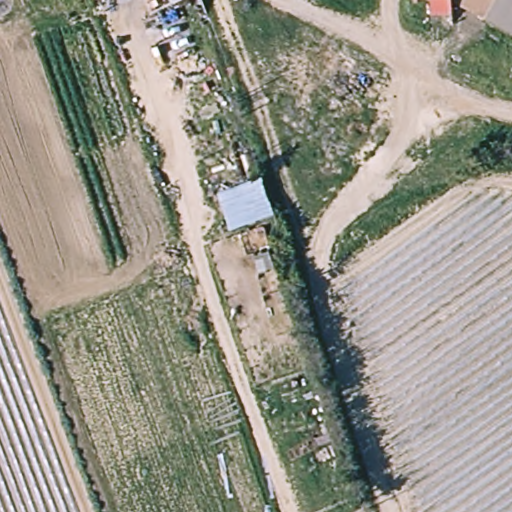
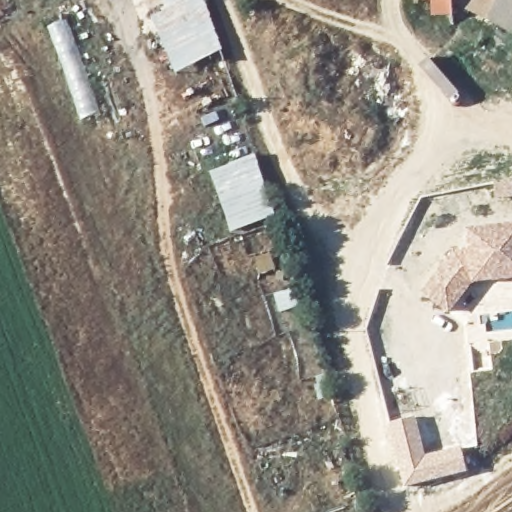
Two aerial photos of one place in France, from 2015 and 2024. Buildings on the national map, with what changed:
new [(213,21),(163,45),(151,16),(171,5),(183,0),(204,0),(213,21)]
unchanged [(171,5),(169,0),(183,0),(171,5)]
unchanged [(512,35),(455,1),(425,1),(425,0),(512,0),(512,35)]
new [(67,19),(99,110),(81,118),(48,26),(67,19)]
new [(213,21),(222,49),(176,73),(163,45),(213,21)]
new [(210,171),(256,153),(263,178),(217,194),(210,171)]
unchanged [(275,215),(230,233),(217,194),(263,178),(275,215)]
new [(454,253),(470,250),(468,230),(512,226),(512,278),(473,282),(450,311),(424,292),(454,253)]

